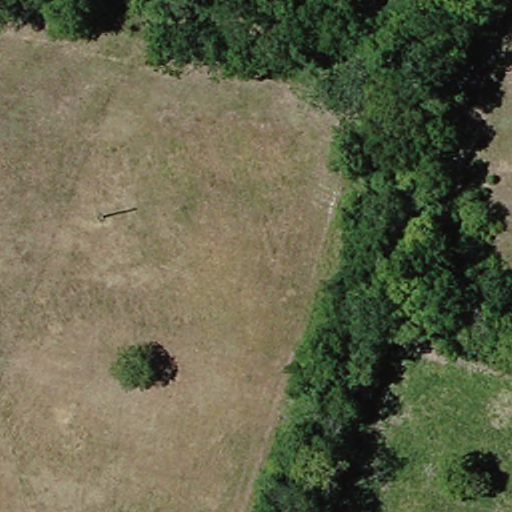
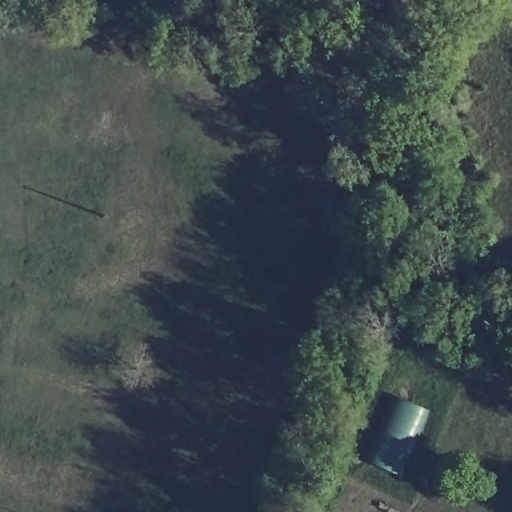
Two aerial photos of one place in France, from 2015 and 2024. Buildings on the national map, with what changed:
new [(368,462),(396,399),(429,413),(401,477),(368,462)]

